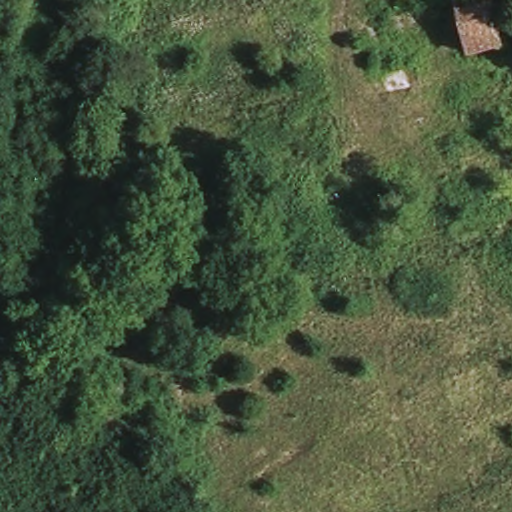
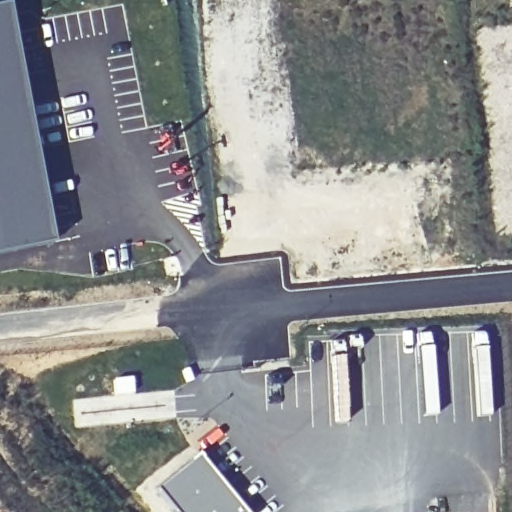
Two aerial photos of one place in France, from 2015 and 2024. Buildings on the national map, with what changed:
demolished [(482,45),(466,0),(504,0),(512,22),(512,37),(482,45)]
new [(54,244),(0,255),(0,5),(4,4),(54,244)]
new [(159,487),(201,452),(249,512),(179,512),(159,487)]

